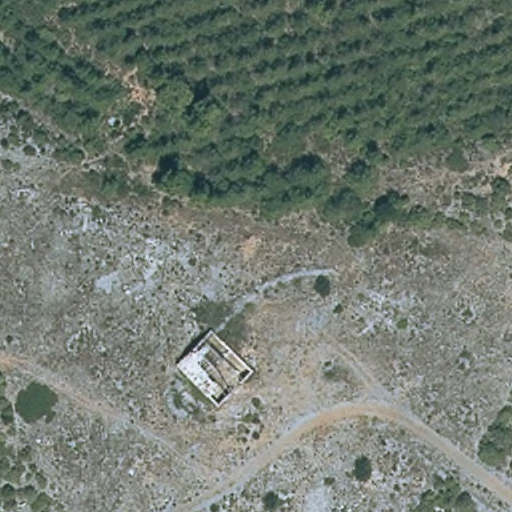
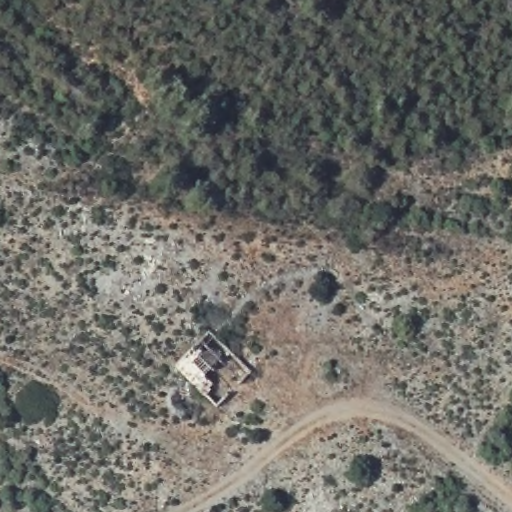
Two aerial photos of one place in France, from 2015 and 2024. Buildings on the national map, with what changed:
unchanged [(209,326),(253,371),(214,408),(170,363),(209,326)]

